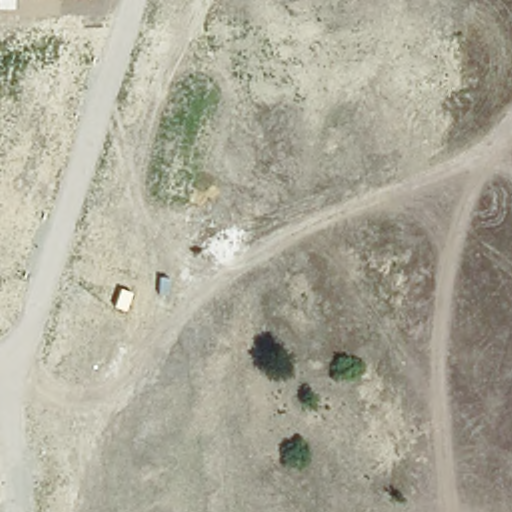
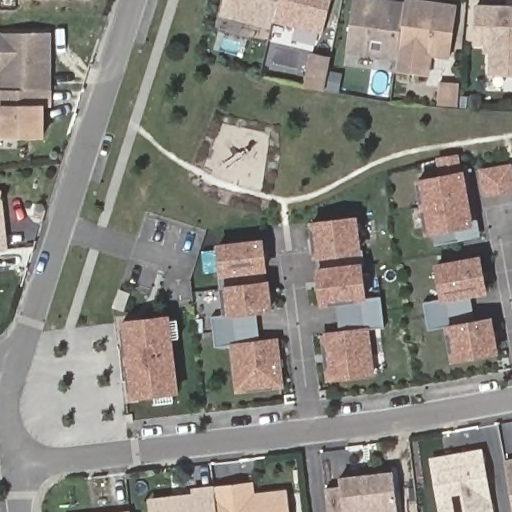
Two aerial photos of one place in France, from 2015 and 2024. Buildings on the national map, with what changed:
new [(270,19),(269,22),(222,10),(225,0),(277,0),(272,19),(270,19)]
new [(272,17),(277,0),(330,0),(322,30),(272,17)]
new [(400,24),(350,22),(353,0),(377,0),(404,4),(401,24),(400,24)]
new [(401,24),(404,4),(405,0),(412,0),(456,6),(453,25),(401,24)]
new [(487,72),(488,42),(472,42),(473,5),(512,6),(512,73),(487,72)]
new [(395,57),(346,50),(350,22),(400,24),(395,57)]
new [(448,60),(431,59),(428,75),(393,70),(395,57),(400,24),(401,24),(453,25),(448,60)]
new [(4,89),(4,69),(0,69),(0,34),(52,34),(51,89),(4,89)]
new [(322,93),(304,89),(312,54),(329,57),(322,93)]
new [(51,105),(44,105),(45,135),(0,135),(0,105),(0,89),(4,89),(51,89),(51,105)]
new [(442,174),(439,155),(462,152),(464,170),(473,225),(475,237),(430,244),(428,232),(415,179),(442,174)]
new [(510,167),(512,177),(512,189),(487,194),(483,171),(510,167)]
new [(0,249),(0,209),(4,249),(0,249)]
new [(320,331),(341,329),(337,304),(320,305),(309,220),(357,215),(366,298),(381,296),(384,324),(369,326),(375,375),(327,381),(320,331)]
new [(229,344),(216,345),(212,317),(223,316),(214,242),(263,237),(272,309),(257,311),(259,339),(277,337),(284,386),(234,392),(229,344)]
new [(482,256),(487,292),(471,295),(475,320),(493,316),(498,351),(451,359),(446,325),(429,328),(425,301),(439,299),(433,263),(482,256)]
new [(170,315),(179,392),(129,399),(120,321),(170,315)]
new [(491,512),(439,512),(431,460),(480,451),(491,512)]
new [(504,461),(512,460),(512,507),(504,461)]
new [(395,512),(325,512),(323,492),(338,491),(337,482),(390,475),(395,512)]
new [(215,488),(231,486),(252,483),(254,495),(233,498),(286,491),(289,512),(219,512),(215,488)]
new [(214,512),(148,512),(147,502),(191,496),(190,490),(211,487),(214,512)]

